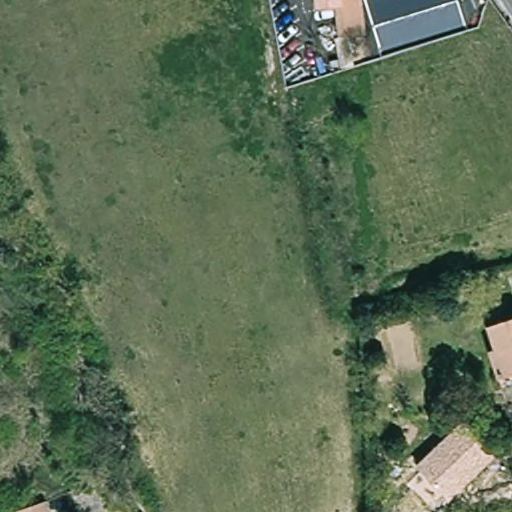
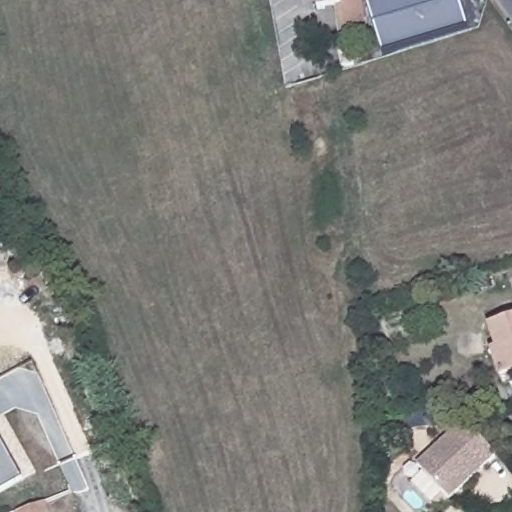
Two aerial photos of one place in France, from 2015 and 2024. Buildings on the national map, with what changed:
unchanged [(366,35),(341,39),(337,5),(319,6),(318,0),(361,0),(366,35)]
unchanged [(468,27),(386,52),(368,0),(459,0),(468,27)]
unchanged [(368,272),(373,270),(379,290),(358,295),(353,276),(368,272)]
unchanged [(504,388),(502,380),(491,345),(498,343),(491,322),(512,315),(512,386),(504,388)]
unchanged [(419,463),(464,421),(497,453),(452,500),(419,463)]
new [(0,492),(0,439),(23,479),(0,492)]
unchanged [(45,502),(51,500),(56,512),(25,512),(24,510),(45,502)]

